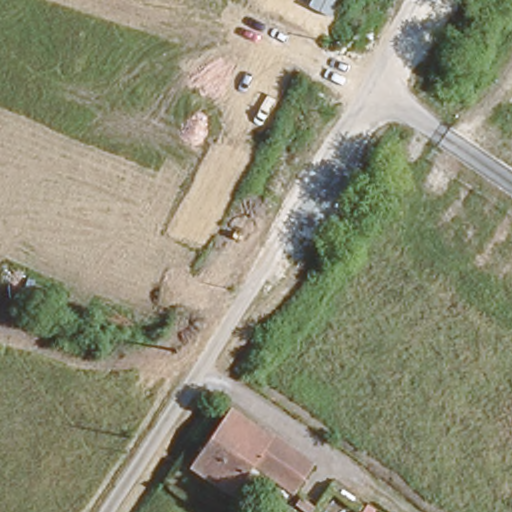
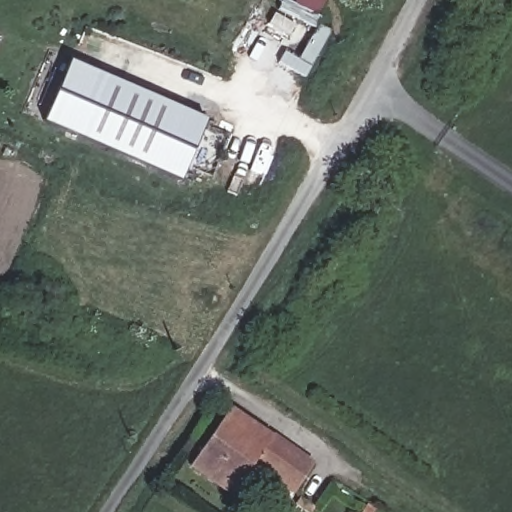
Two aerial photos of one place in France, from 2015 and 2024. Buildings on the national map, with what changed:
new [(205,121),(179,181),(42,122),(69,61),(205,121)]
unchanged [(302,482),(292,476),(277,466),(280,460),(263,447),(244,476),(202,448),(236,400),(308,452),(317,459),(302,482)]

